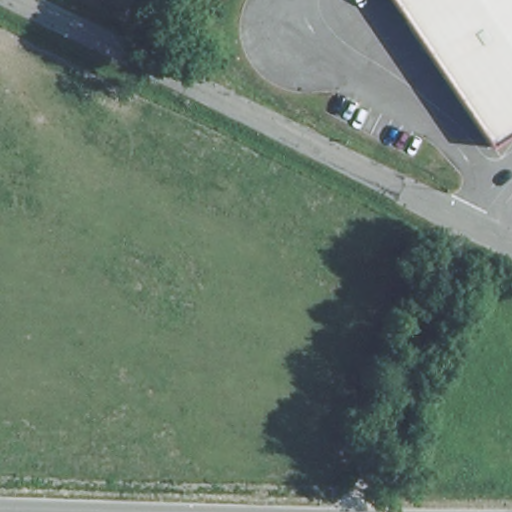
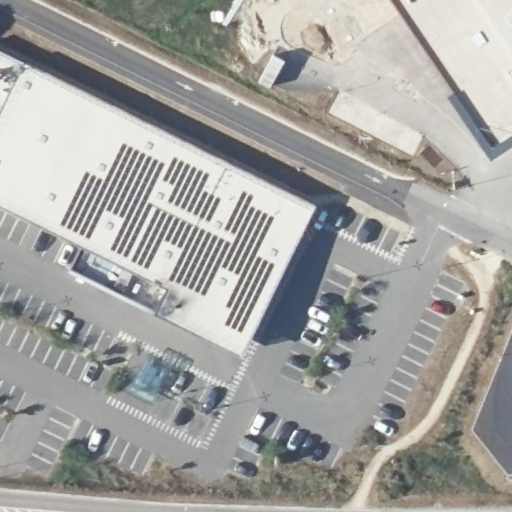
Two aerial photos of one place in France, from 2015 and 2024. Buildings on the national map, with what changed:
unchanged [(489,148),(390,0),(512,0),(512,133),(489,148)]
new [(250,369),(146,323),(159,300),(0,222),(0,54),(322,218),(250,369)]

